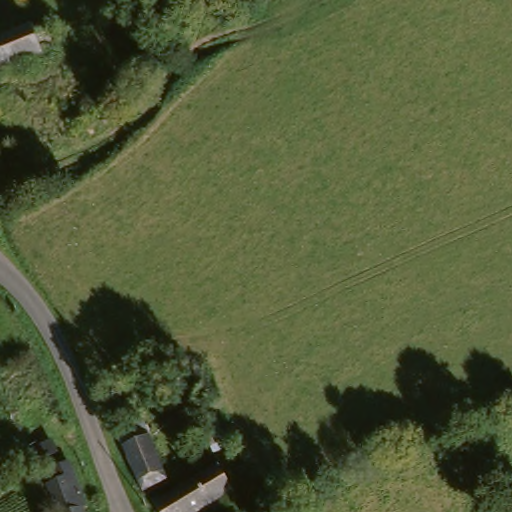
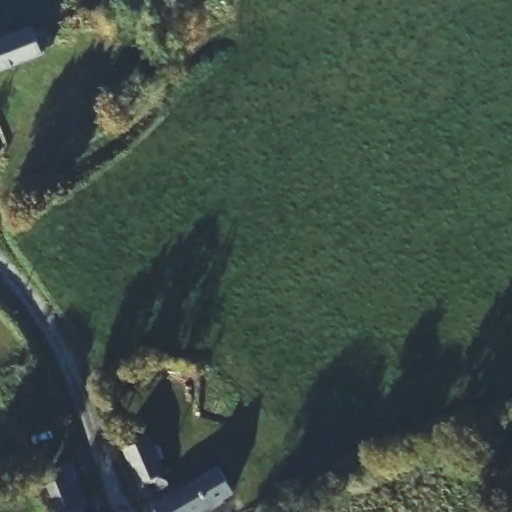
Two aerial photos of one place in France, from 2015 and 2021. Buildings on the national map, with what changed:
unchanged [(41,42),(46,62),(36,64),(36,68),(23,72),(0,78),(0,47),(26,40),(41,42)]
unchanged [(165,486),(141,497),(114,436),(138,425),(165,486)]
unchanged [(148,512),(146,509),(213,467),(228,494),(200,512),(148,512)]
unchanged [(71,475),(84,505),(81,507),(82,512),(54,512),(41,486),(71,475)]

